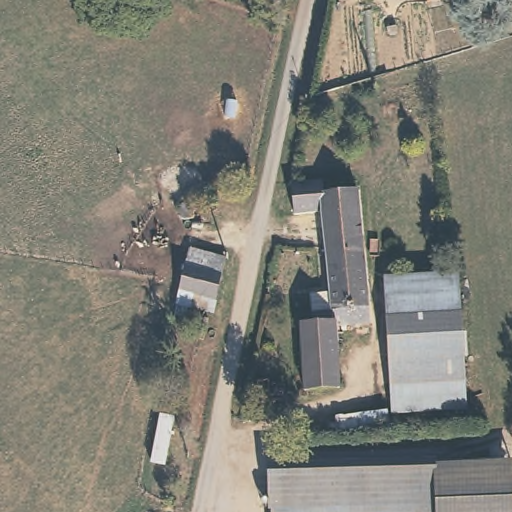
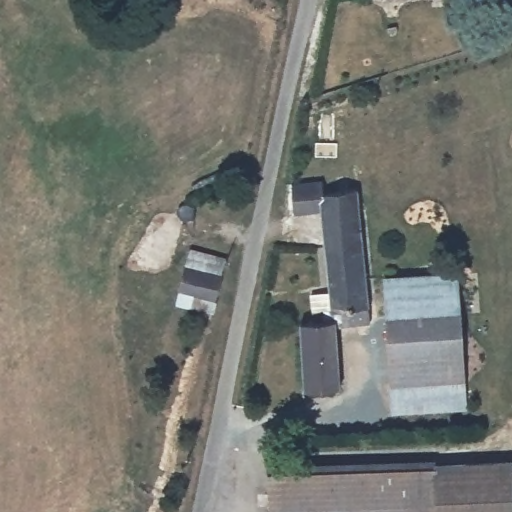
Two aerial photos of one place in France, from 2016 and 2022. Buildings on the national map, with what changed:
unchanged [(359,193),(374,325),(340,330),(347,394),(310,396),(303,326),(315,324),(313,293),(333,291),(323,214),(297,216),(294,187),(327,184),(329,197),(359,193)]
unchanged [(192,204),(194,222),(185,223),(180,220),(179,210),(183,205),(192,204)]
unchanged [(222,273),(217,295),(196,290),(193,303),(177,300),(185,265),(222,273)]
unchanged [(384,278),(447,273),(456,272),(464,407),(392,412),(391,385),(384,278)]
unchanged [(512,512),(436,512),(436,503),(429,462),(509,458),(512,512)]
unchanged [(429,462),(436,503),(270,510),(269,469),(429,462)]
unchanged [(436,512),(271,512),(270,510),(436,503),(436,512)]

